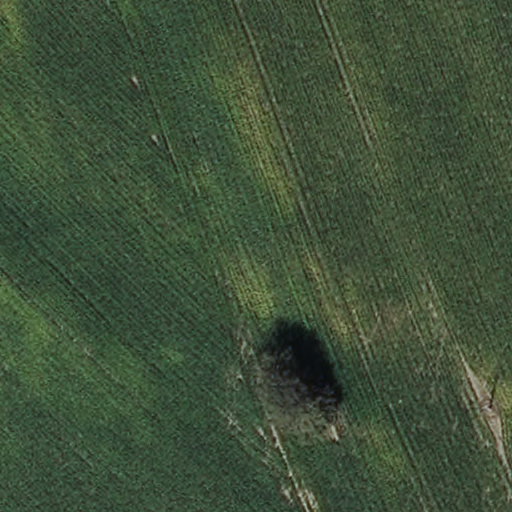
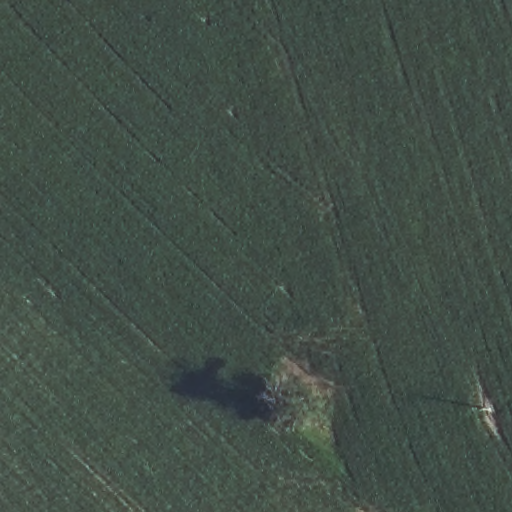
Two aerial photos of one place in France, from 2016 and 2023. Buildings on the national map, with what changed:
[]

